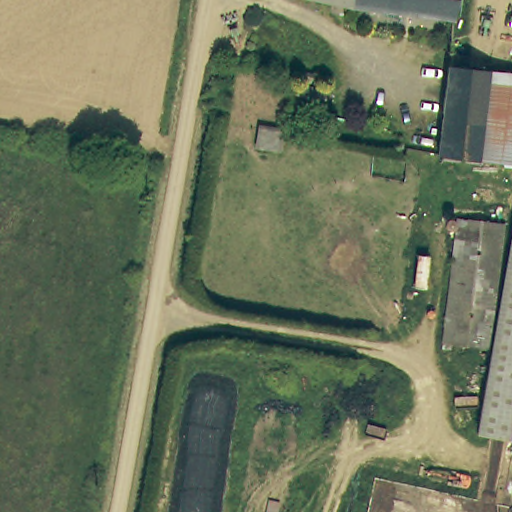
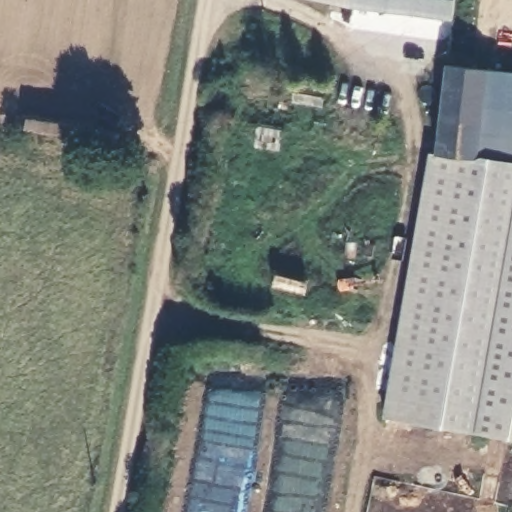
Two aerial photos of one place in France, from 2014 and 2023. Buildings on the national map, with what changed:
unchanged [(452,2),(450,17),(368,6),(329,0),(466,0),(465,4),(452,2)]
new [(430,152),(436,154),(446,65),(512,72),(512,440),(383,417),(430,152)]
unchanged [(297,80),(322,84),(318,111),(294,104),(297,80)]
demolished [(485,348),(438,345),(447,229),(494,232),(485,348)]

